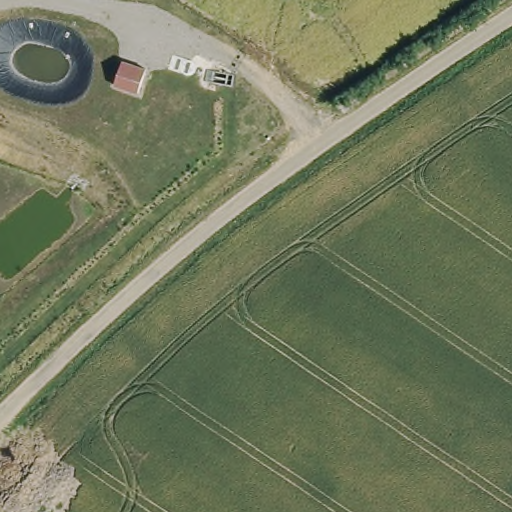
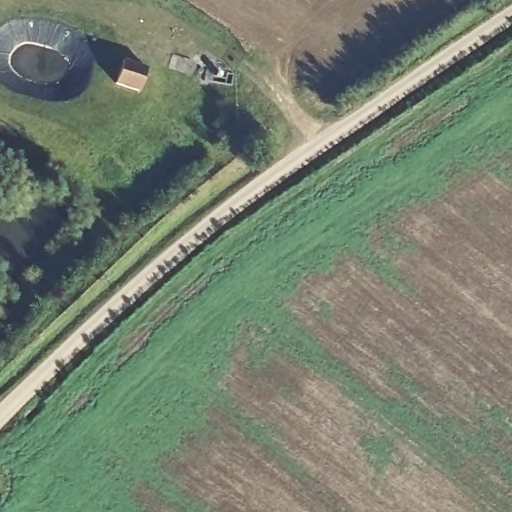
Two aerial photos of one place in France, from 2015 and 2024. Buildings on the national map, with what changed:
unchanged [(147,68),(139,94),(113,86),(123,59),(147,68)]

